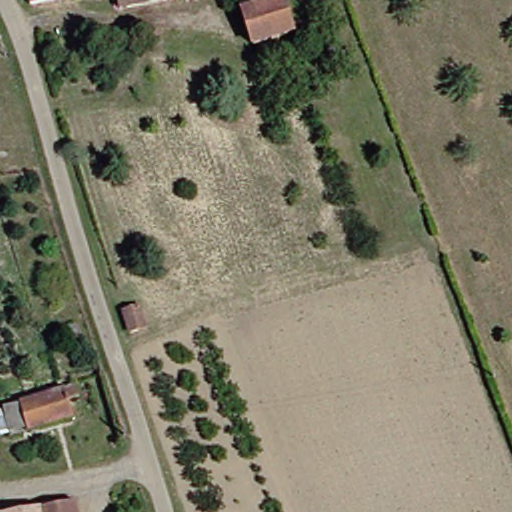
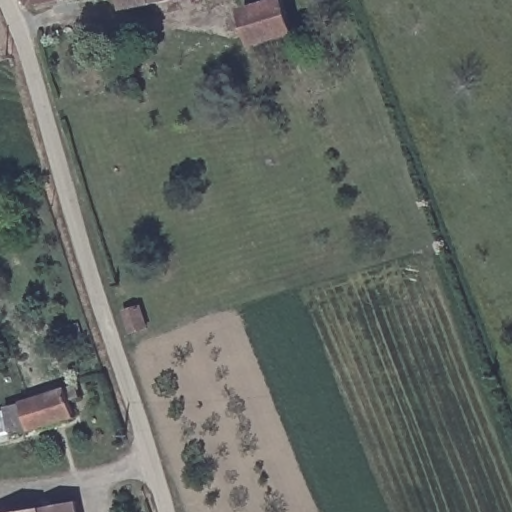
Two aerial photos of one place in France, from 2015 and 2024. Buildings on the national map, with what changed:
unchanged [(38,0),(58,0),(38,3),(38,0)]
unchanged [(127,0),(173,0),(129,7),(127,0)]
unchanged [(254,46),(251,35),(244,10),(279,0),(283,0),(288,19),(300,15),(301,19),(305,30),(254,46)]
unchanged [(74,400),(80,416),(33,432),(23,403),(79,385),(83,397),(74,400)]
unchanged [(12,432),(5,414),(15,410),(22,429),(12,432)]
unchanged [(80,505),(81,512),(42,512),(80,505)]

